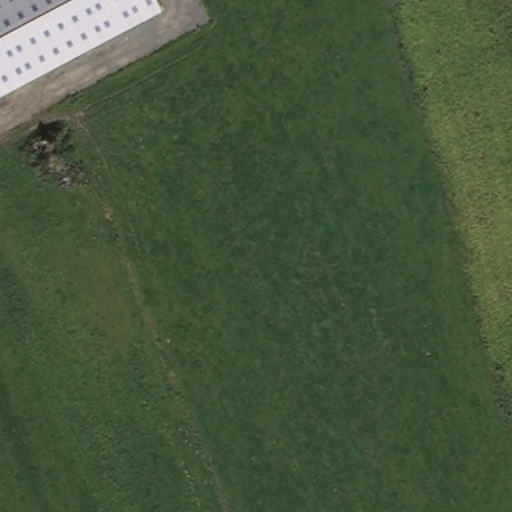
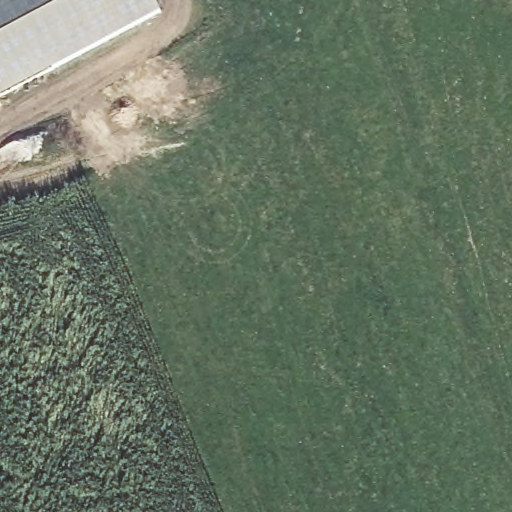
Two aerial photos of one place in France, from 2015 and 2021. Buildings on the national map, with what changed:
unchanged [(160,12),(0,97),(0,0),(153,0),(160,12)]

